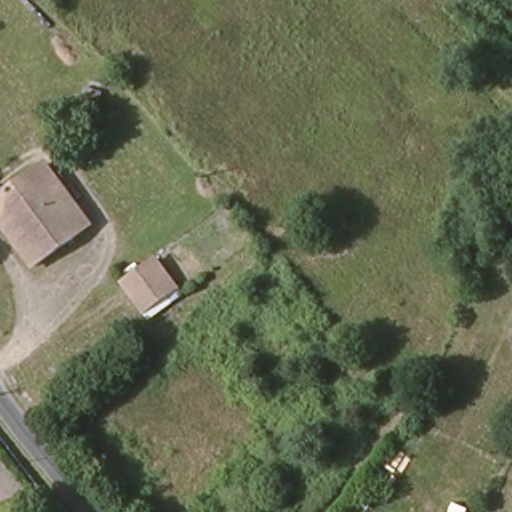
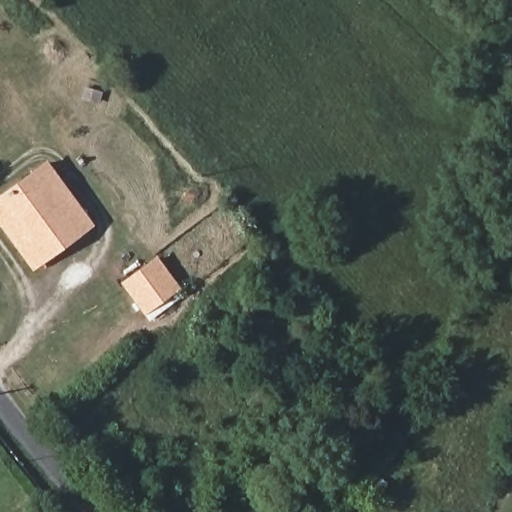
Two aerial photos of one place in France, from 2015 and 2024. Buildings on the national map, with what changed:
unchanged [(94,218),(56,243),(36,259),(0,208),(0,188),(48,154),(94,218)]
unchanged [(158,257),(179,284),(146,307),(127,279),(158,257)]

